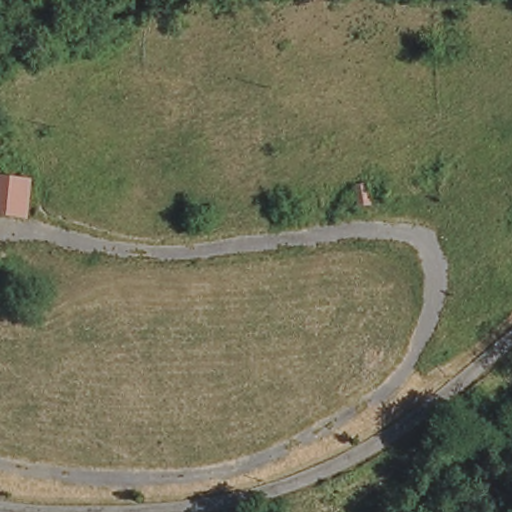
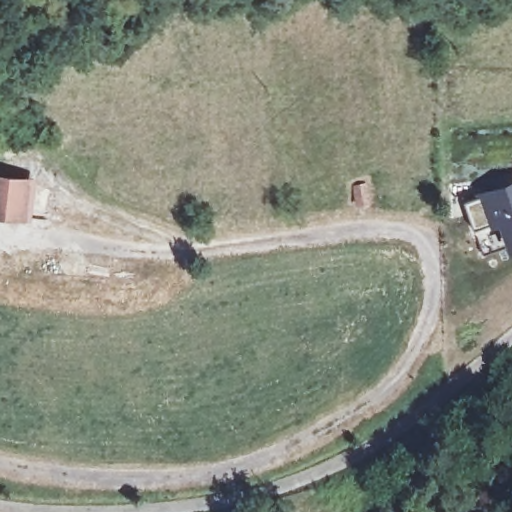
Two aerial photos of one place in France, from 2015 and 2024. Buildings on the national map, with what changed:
new [(509,249),(498,223),(491,226),(489,221),(475,228),(466,202),(477,198),(476,193),(512,178),(512,248),(509,249)]
unchanged [(35,207),(0,214),(0,187),(29,183),(35,207)]

